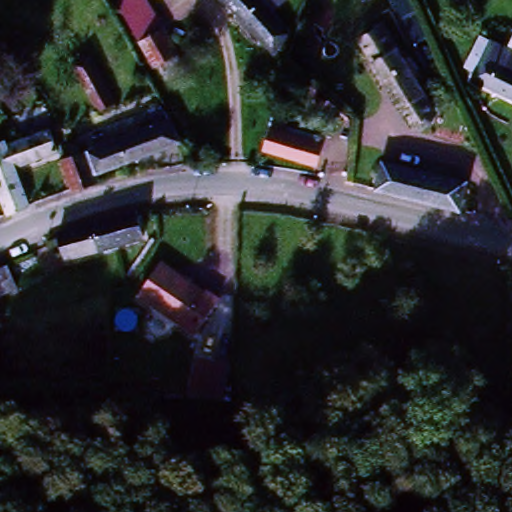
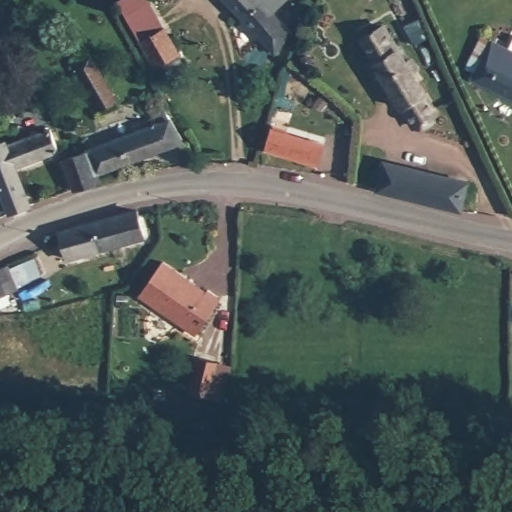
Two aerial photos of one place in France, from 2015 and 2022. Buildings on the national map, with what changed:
unchanged [(156,61),(121,0),(150,0),(178,49),(156,61)]
unchanged [(289,32),(271,52),(223,0),(280,0),(268,11),(289,32)]
unchanged [(437,107),(417,119),(364,33),(384,21),(437,107)]
unchanged [(489,41),(512,52),(512,99),(470,78),(489,41)]
unchanged [(111,108),(97,115),(72,70),(86,62),(111,108)]
unchanged [(74,190),(63,159),(68,158),(156,126),(150,109),(163,103),(176,125),(183,141),(98,173),(100,181),(74,190)]
unchanged [(318,158),(269,143),(274,124),(324,140),(318,158)]
unchanged [(3,145),(45,129),(54,149),(11,167),(25,205),(6,213),(0,198),(0,142),(1,141),(3,145)]
unchanged [(386,158),(469,176),(463,203),(379,185),(386,158)]
unchanged [(140,214),(145,236),(66,257),(61,240),(59,233),(139,211),(140,214)]
unchanged [(163,261),(222,299),(198,334),(139,297),(163,261)]
unchanged [(0,296),(0,267),(8,263),(19,287),(0,296)]

